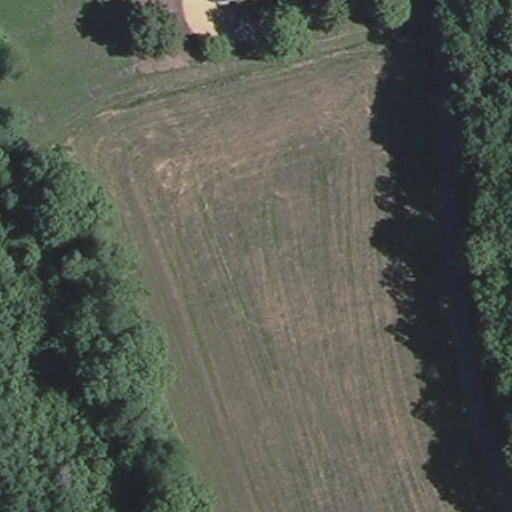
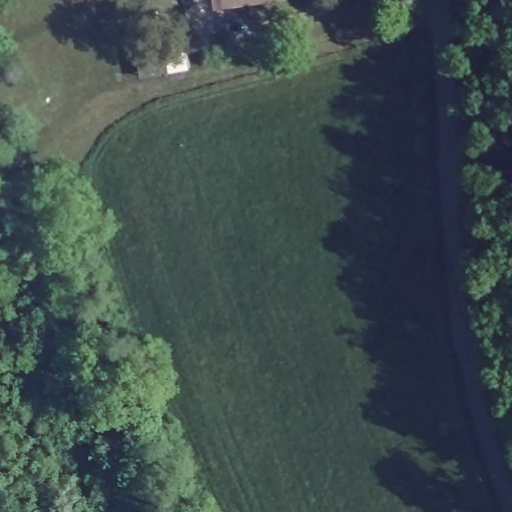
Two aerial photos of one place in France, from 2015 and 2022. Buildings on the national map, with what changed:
unchanged [(217,4),(216,0),(245,0),(217,4)]

